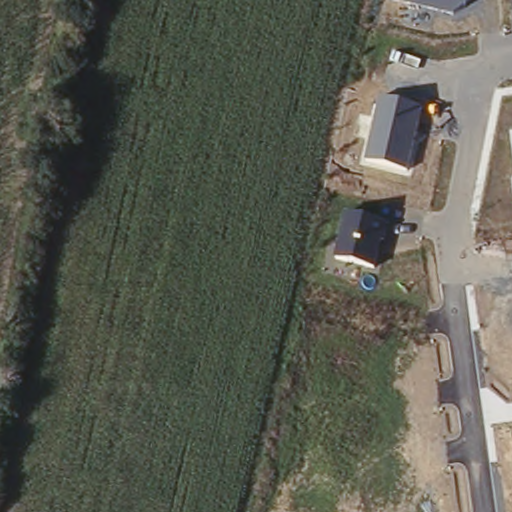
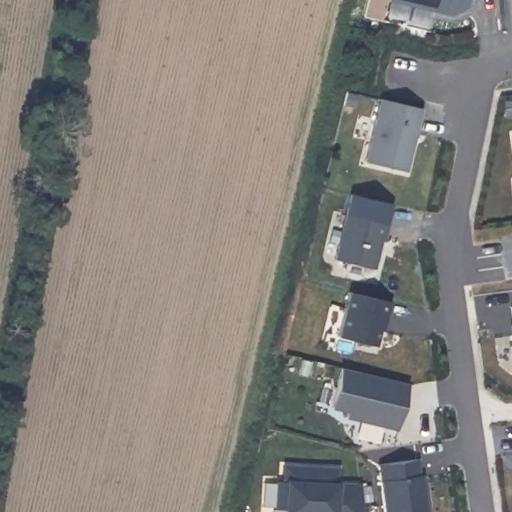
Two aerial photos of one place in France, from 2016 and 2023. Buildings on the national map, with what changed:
unchanged [(390,1),(391,0),(470,0),(469,5),(454,16),(390,1)]
unchanged [(382,101),(422,110),(407,171),(366,162),(382,101)]
unchanged [(348,211),(393,220),(389,241),(385,240),(377,270),(335,260),(348,211)]
new [(393,295),(389,312),(385,312),(377,341),(343,334),(351,285),(393,295)]
new [(410,380),(401,425),(350,415),(352,409),(336,405),(344,363),(410,380)]
new [(419,456),(421,473),(425,472),(430,512),(387,512),(380,461),(419,456)]
new [(279,505),(279,478),(286,478),(287,463),(338,465),(337,481),(362,482),(366,512),(314,512),(287,512),(287,505),(279,505)]

